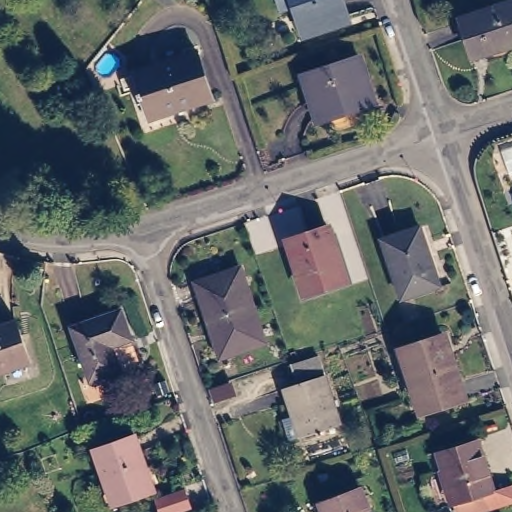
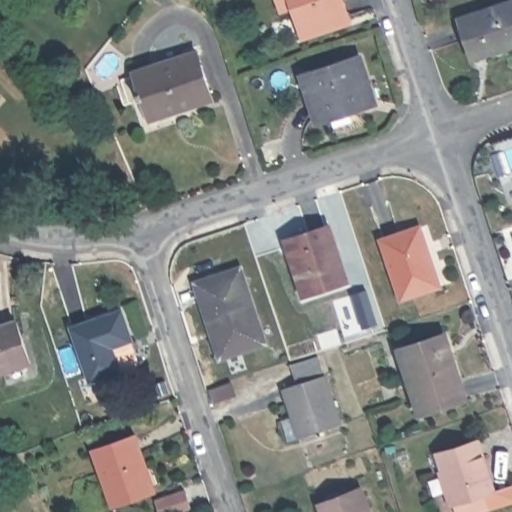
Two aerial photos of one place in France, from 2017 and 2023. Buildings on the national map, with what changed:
unchanged [(353,19),(311,33),(301,2),(290,6),(288,0),(347,0),(353,19)]
unchanged [(512,38),(469,52),(459,15),(504,0),(512,0),(512,38)]
unchanged [(200,46),(216,92),(153,112),(146,94),(142,94),(141,89),(144,87),(137,68),(200,46)]
unchanged [(367,61),(381,106),(324,124),(311,79),(367,61)]
unchanged [(329,226),(348,280),(306,293),(288,240),(329,226)]
unchanged [(422,232),(440,291),(402,302),(384,244),(422,232)]
unchanged [(220,326),(206,278),(246,265),(269,335),(232,347),(228,348),(220,326)]
unchanged [(128,303),(146,363),(129,370),(127,365),(98,376),(80,320),(128,303)]
unchanged [(19,318),(31,358),(0,369),(0,325),(19,318)]
unchanged [(448,337),(467,399),(425,413),(405,352),(448,337)]
unchanged [(331,372),(346,421),(309,432),(304,418),(301,419),(291,384),(331,372)]
unchanged [(132,437),(151,492),(113,506),(93,449),(132,437)]
unchanged [(463,512),(459,499),(456,500),(442,449),(482,437),(497,487),(486,491),(490,506),(467,512),(463,512)]
unchanged [(366,512),(321,512),(319,507),(360,493),(366,512)]

